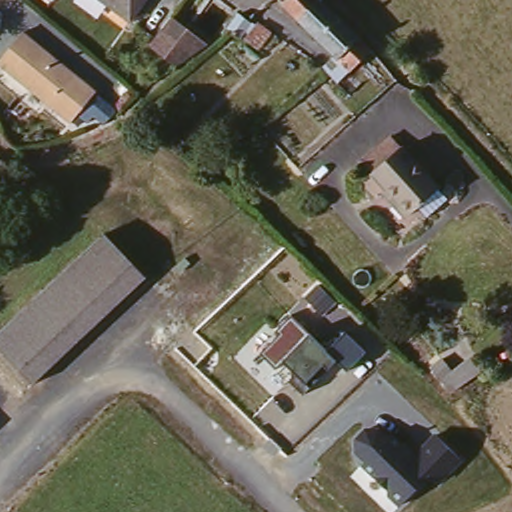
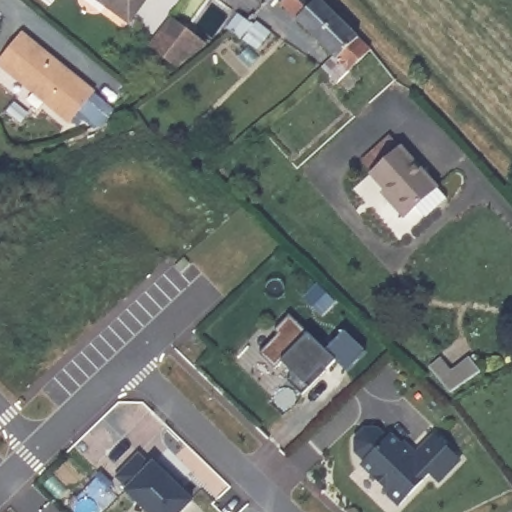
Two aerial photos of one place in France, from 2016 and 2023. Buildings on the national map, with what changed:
unchanged [(102,0),(144,0),(129,20),(102,0)]
unchanged [(326,64),(340,52),(291,0),(334,0),(338,4),(361,28),(367,34),(369,36),(373,40),(377,42),(340,76),(326,64)]
unchanged [(249,18),(238,31),(230,26),(227,24),(225,22),(235,8),(245,13),(249,18)]
unchanged [(202,43),(175,69),(148,41),(170,16),(172,16),(202,43)]
unchanged [(255,44),(243,35),(257,17),(264,24),(255,44)]
unchanged [(81,111),(87,116),(78,126),(72,121),(69,124),(0,65),(0,62),(23,34),(94,94),(81,111)]
demolished [(108,169),(115,161),(118,159),(138,140),(159,162),(140,180),(139,179),(128,190),(108,169)]
unchanged [(404,219),(392,207),(397,202),(385,189),(373,175),(402,150),(414,165),(436,190),(404,219)]
demolished [(27,383),(0,355),(0,325),(99,234),(140,279),(122,296),(27,383)]
unchanged [(368,351),(347,371),(335,362),(310,387),(302,396),(286,379),(294,370),(281,358),(274,366),(262,353),(282,333),(278,328),(291,316),(308,335),(326,351),(345,332),(368,351)]
unchanged [(451,393),(432,368),(444,359),(454,372),(471,360),(480,371),(451,393)]
unchanged [(440,483),(431,473),(399,505),(386,494),(386,487),(361,465),(364,461),(355,452),(354,440),(365,428),(377,426),(384,435),(388,430),(414,455),(434,435),(463,459),(440,483)]
new [(149,460),(154,454),(177,475),(174,478),(190,495),(173,512),(153,512),(113,473),(137,447),(149,460)]

